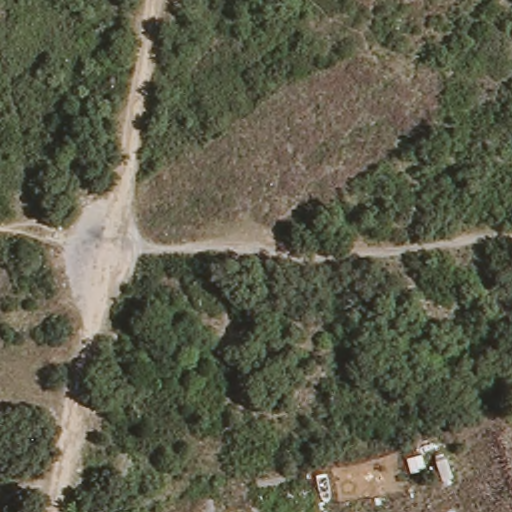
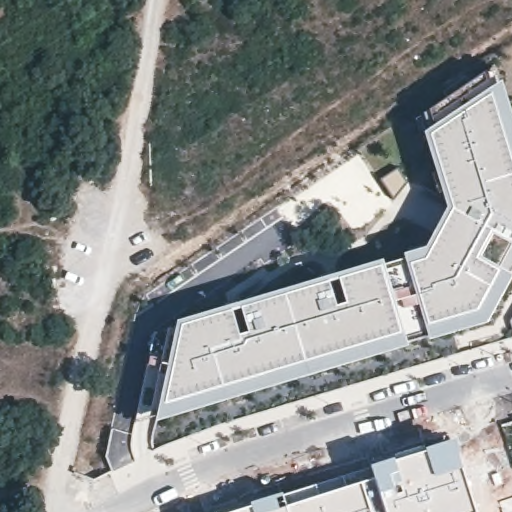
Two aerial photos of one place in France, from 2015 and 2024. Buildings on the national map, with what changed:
new [(155,333),(426,250),(452,207),(422,113),(491,67),(512,135),(512,265),(482,319),(136,424),(155,333)]
new [(510,322),(512,318),(512,328),(510,322)]
new [(476,512),(220,512),(370,465),(452,439),(476,512)]

